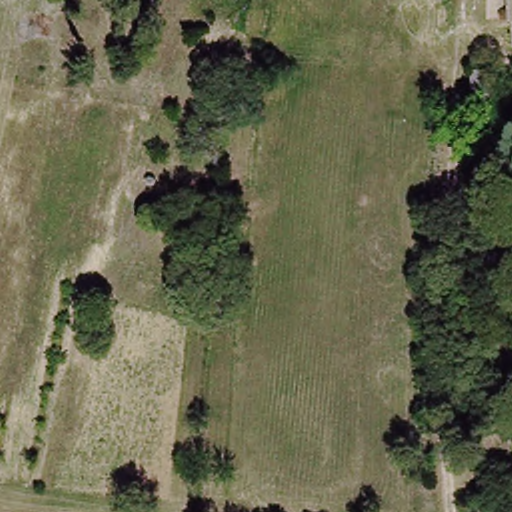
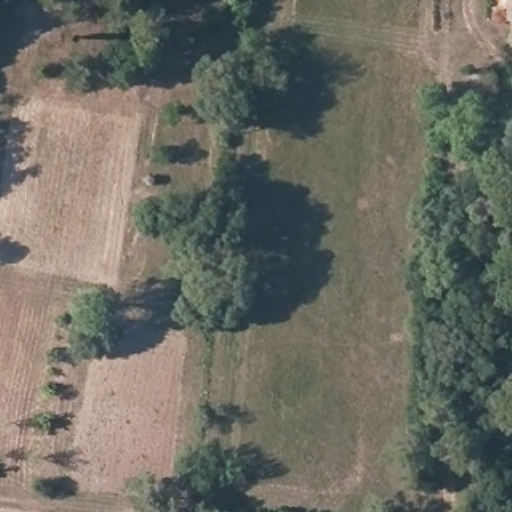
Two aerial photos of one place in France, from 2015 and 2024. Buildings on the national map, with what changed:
unchanged [(473,70),(494,72),(493,103),(471,102),(473,70)]

